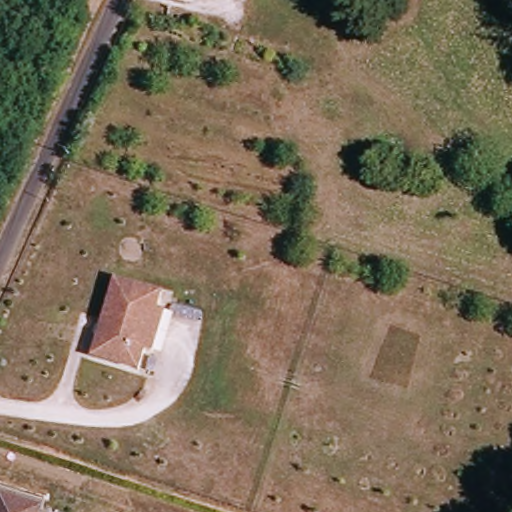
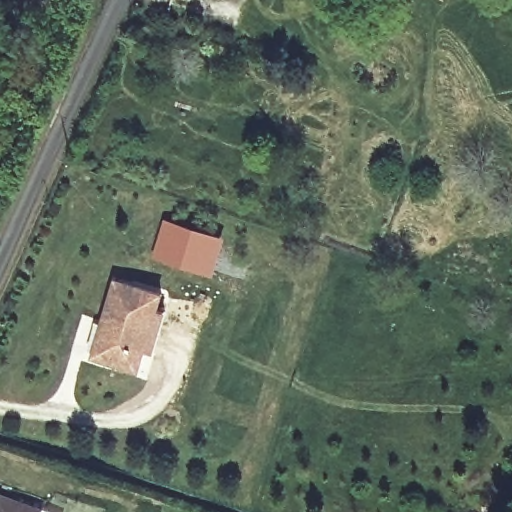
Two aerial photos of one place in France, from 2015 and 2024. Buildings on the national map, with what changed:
new [(163,217),(226,236),(212,279),(150,257),(163,217)]
unchanged [(154,351),(146,348),(140,368),(95,353),(116,288),(120,277),(165,292),(161,304),(160,308),(167,311),(154,351)]
unchanged [(0,512),(0,505),(4,492),(48,507),(46,512),(0,512)]

